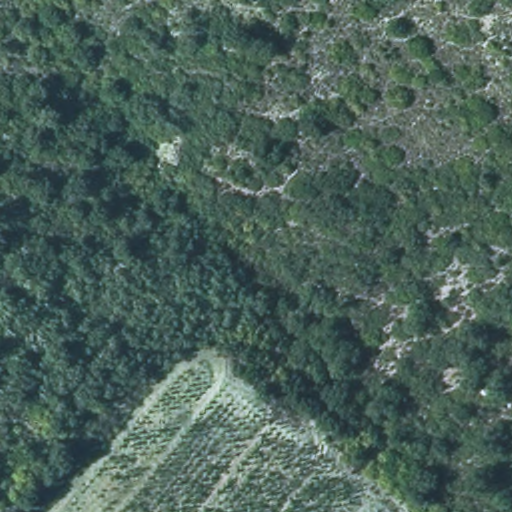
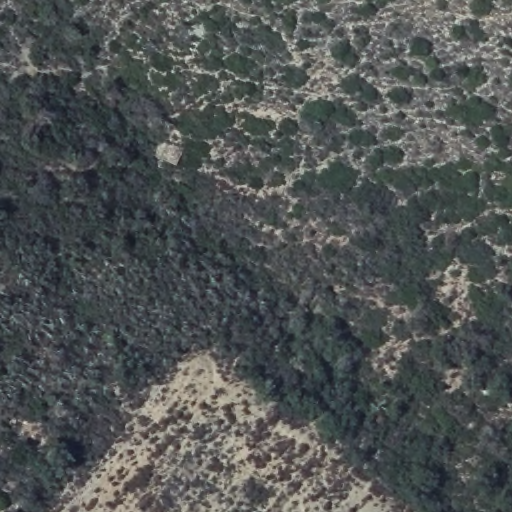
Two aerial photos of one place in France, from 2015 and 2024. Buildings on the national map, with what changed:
unchanged [(169,139),(182,142),(173,164),(155,157),(169,139)]

